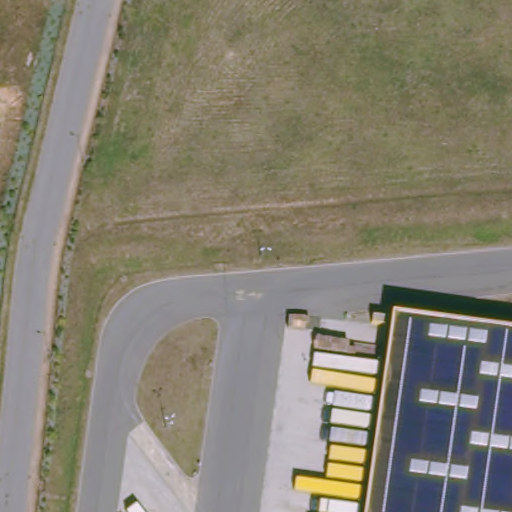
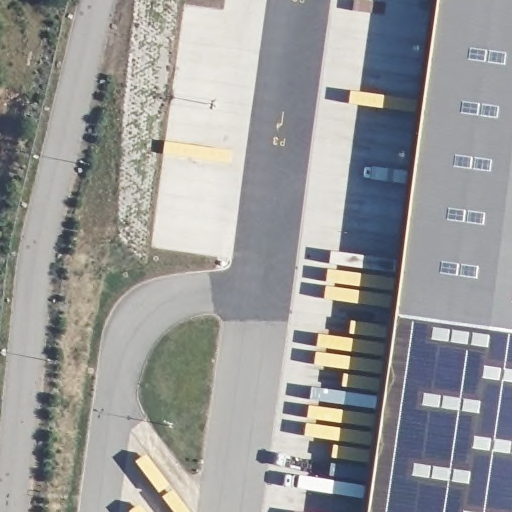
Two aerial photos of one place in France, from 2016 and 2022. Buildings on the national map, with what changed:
new [(439,0),(512,0),(512,328),(396,312),(439,0)]
unchanged [(512,328),(512,512),(367,512),(396,312),(512,328)]

